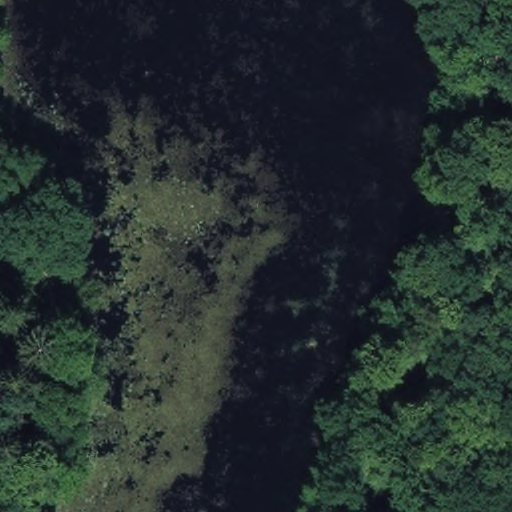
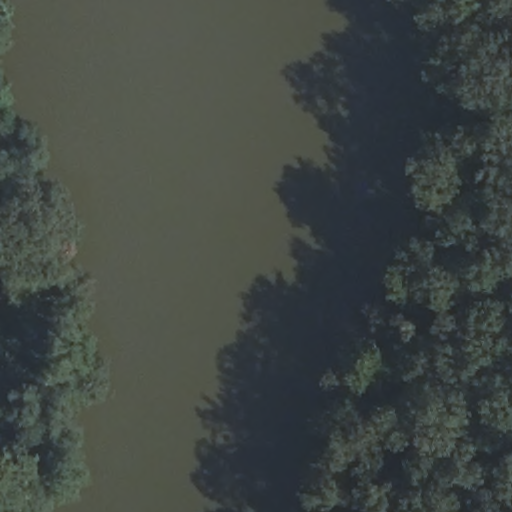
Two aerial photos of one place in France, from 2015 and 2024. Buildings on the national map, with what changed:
[]

